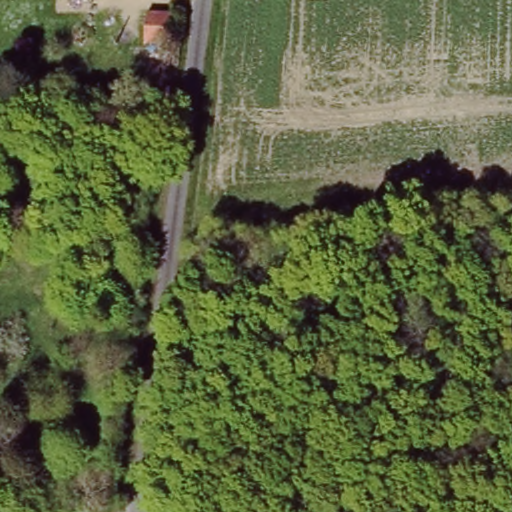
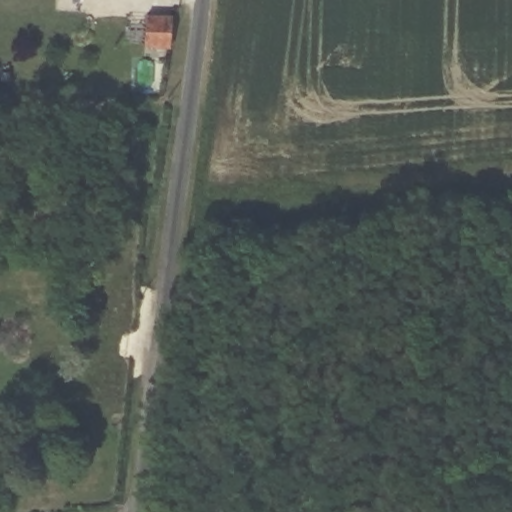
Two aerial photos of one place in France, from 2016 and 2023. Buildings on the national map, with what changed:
unchanged [(172,49),(140,45),(125,42),(128,18),(145,20),(176,24),(172,49)]

